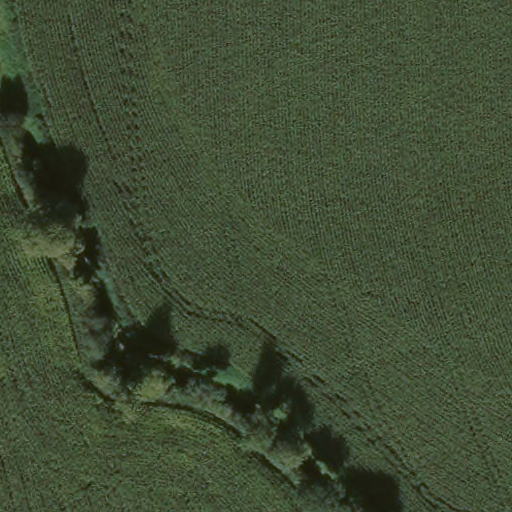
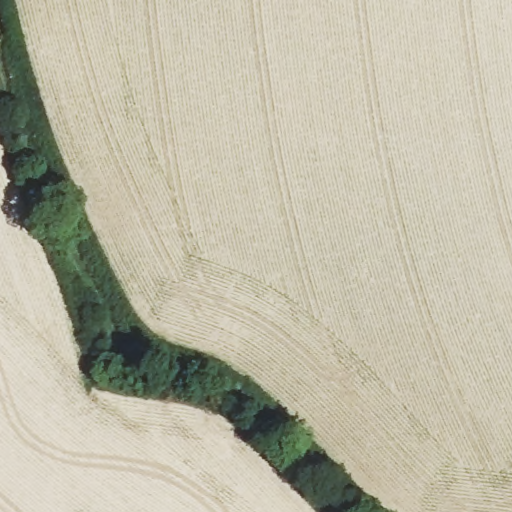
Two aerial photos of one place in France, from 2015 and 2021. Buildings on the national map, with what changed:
[]

